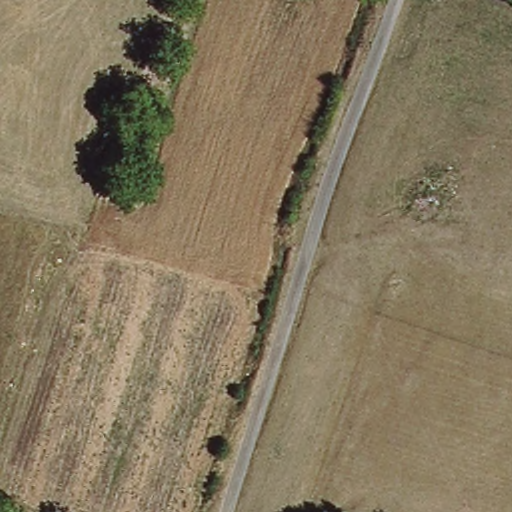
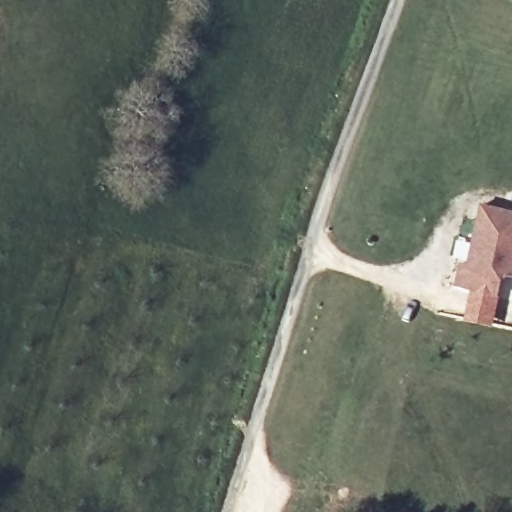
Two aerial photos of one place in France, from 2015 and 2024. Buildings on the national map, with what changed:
new [(512,213),(512,279),(504,277),(499,298),(454,287),(460,264),(467,266),(481,206),(512,213)]

